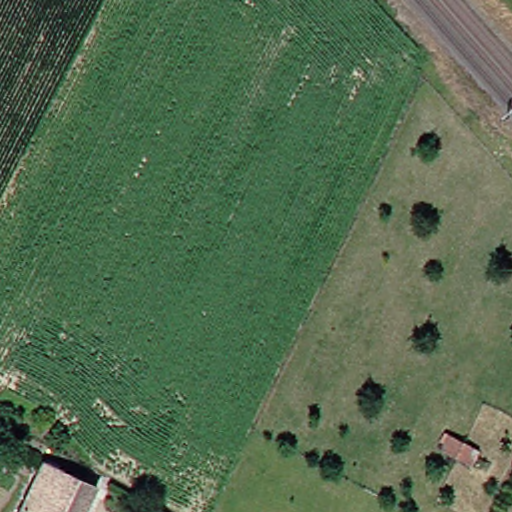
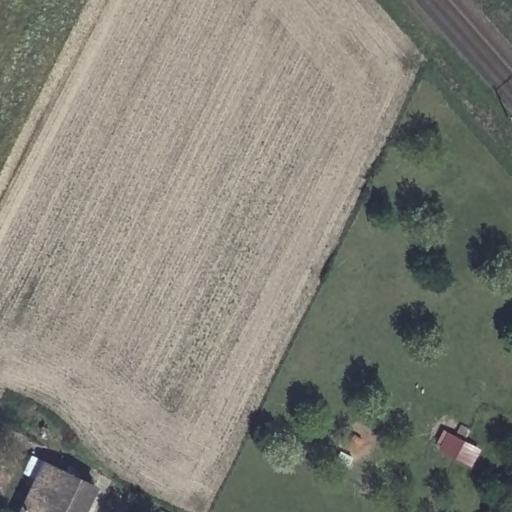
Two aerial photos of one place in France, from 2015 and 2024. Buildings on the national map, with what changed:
unchanged [(74,512),(23,512),(46,465),(87,485),(74,512)]

